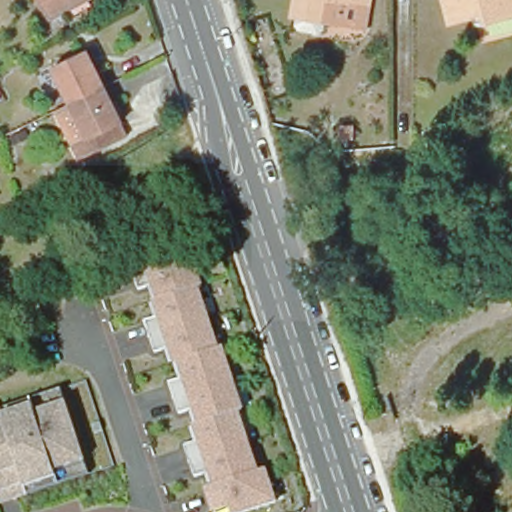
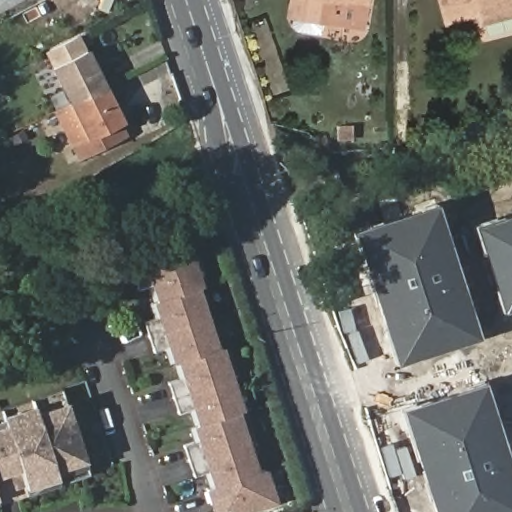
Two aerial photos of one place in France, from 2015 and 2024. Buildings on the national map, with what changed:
demolished [(90,2),(52,22),(39,0),(88,0),(90,2)]
unchanged [(307,24),(292,20),(287,14),(288,6),(286,5),(287,0),(361,0),(355,24),(317,14),(315,21),(307,24)]
unchanged [(444,0),(512,0),(512,12),(485,19),(482,12),(450,21),(444,0)]
unchanged [(47,62),(82,45),(100,82),(66,99),(47,62)]
unchanged [(100,82),(125,131),(77,155),(69,137),(82,131),(66,99),(100,82)]
new [(475,338),(393,362),(355,228),(437,205),(475,338)]
new [(502,310),(474,225),(512,213),(512,306),(502,310)]
unchanged [(258,471),(265,468),(276,502),(248,512),(230,512),(229,508),(217,512),(211,512),(203,488),(211,485),(207,472),(192,476),(181,442),(195,437),(191,422),(195,421),(191,411),(176,415),(166,381),(179,376),(176,361),(171,362),(166,346),(152,350),(141,318),(155,312),(150,301),(153,298),(140,261),(187,249),(258,471)]
new [(431,512),(402,406),(485,383),(512,483),(512,512),(431,512)]
unchanged [(67,402),(85,462),(89,473),(28,493),(0,504),(0,409),(61,390),(67,402)]

